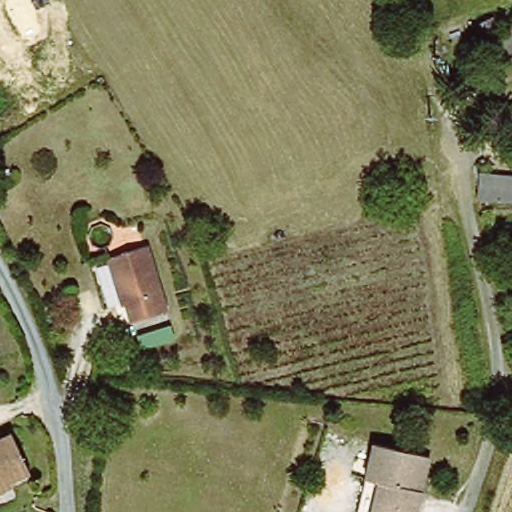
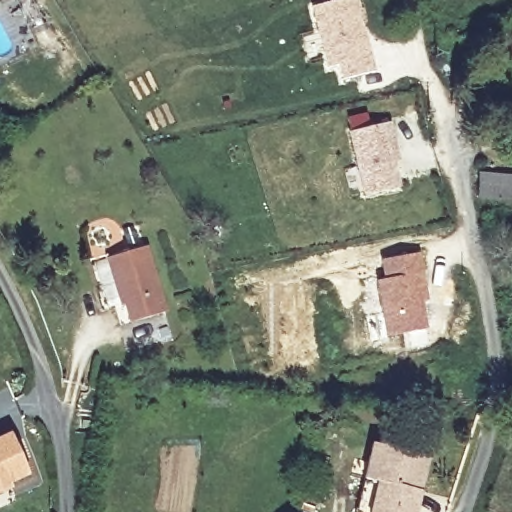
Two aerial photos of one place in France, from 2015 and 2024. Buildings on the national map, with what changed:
new [(343,81),(338,66),(328,70),(312,7),(339,0),(356,0),(375,71),(343,81)]
new [(397,150),(399,160),(394,161),(400,185),(367,195),(352,131),(390,121),(397,150)]
demolished [(482,175),(491,155),(512,164),(512,189),(498,182),(482,175)]
new [(512,176),(512,202),(478,200),(479,174),(512,176)]
unchanged [(113,256),(148,247),(157,278),(163,277),(174,311),(137,322),(128,289),(124,289),(113,256)]
new [(379,280),(387,278),(383,258),(421,251),(425,272),(430,298),(424,300),(430,327),(390,335),(375,338),(370,315),(385,312),(379,280)]
unchanged [(14,431),(27,468),(4,480),(7,486),(0,490),(0,437),(14,431)]
unchanged [(367,476),(377,436),(433,451),(418,512),(358,512),(367,476)]

